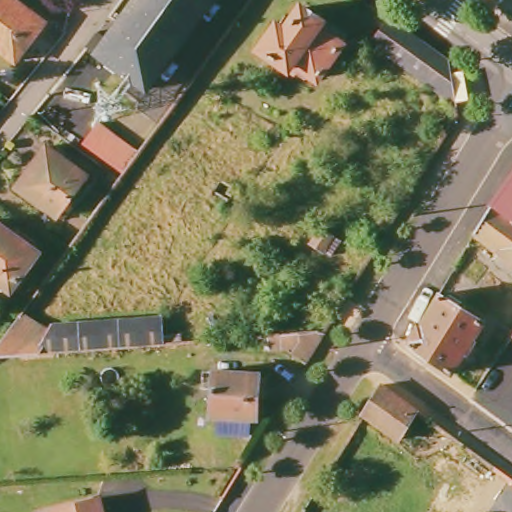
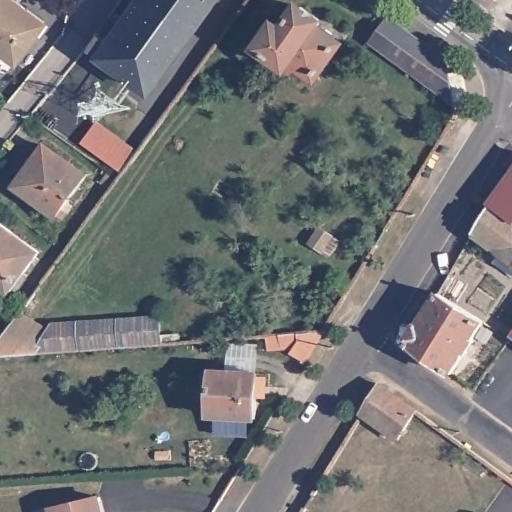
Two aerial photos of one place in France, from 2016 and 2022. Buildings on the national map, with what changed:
unchanged [(18,0),(44,21),(14,61),(0,51),(0,0),(18,0)]
unchanged [(107,39),(135,0),(212,0),(146,90),(86,47),(98,33),(107,39)]
unchanged [(262,49),(279,23),(286,29),(302,7),(320,20),(317,27),(339,44),(315,78),(300,67),(295,74),(262,49)]
unchanged [(371,46),(388,22),(447,64),(455,109),(371,46)]
unchanged [(85,146),(100,125),(140,154),(125,174),(85,146)]
unchanged [(89,175),(59,218),(18,188),(48,145),(89,175)]
unchanged [(512,175),(512,264),(475,238),(493,208),(501,194),(512,175)]
unchanged [(39,252),(10,292),(0,285),(0,224),(39,252)]
unchanged [(332,238),(322,251),(312,244),(322,230),(332,238)]
unchanged [(484,320),(473,339),(476,340),(467,353),(465,352),(452,373),(409,341),(419,323),(420,324),(439,293),(484,320)]
unchanged [(0,357),(0,346),(15,326),(24,315),(49,331),(54,325),(161,316),(163,346),(0,357)]
unchanged [(291,356),(295,350),(268,352),(266,349),(265,339),(324,334),(306,364),(291,356)]
unchanged [(259,376),(255,422),(213,418),(214,373),(259,376)]
unchanged [(381,383),(417,409),(398,438),(362,413),(381,383)]
unchanged [(101,496),(105,512),(55,512),(54,507),(101,496)]

